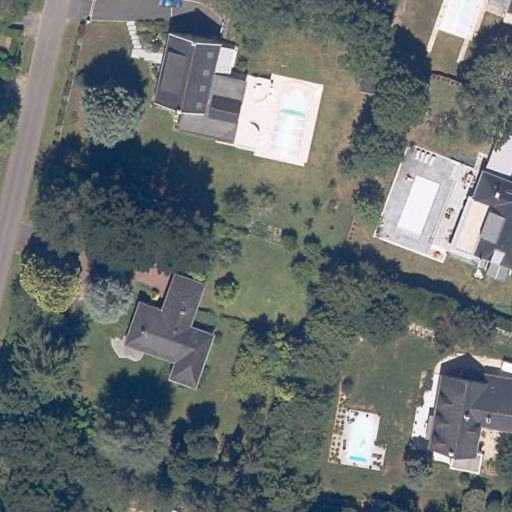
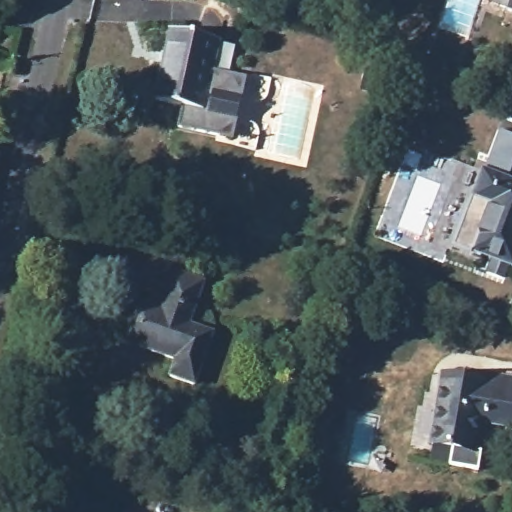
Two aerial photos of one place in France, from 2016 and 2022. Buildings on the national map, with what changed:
unchanged [(512,0),(512,8),(489,0),(512,0)]
unchanged [(170,30),(217,40),(210,72),(231,77),(241,92),(233,127),(217,137),(177,127),(182,107),(155,101),(170,30)]
unchanged [(512,183),(512,266),(472,250),(488,206),(470,199),(481,171),(512,183)]
unchanged [(143,298),(173,309),(176,299),(169,296),(178,268),(207,279),(193,322),(215,331),(198,382),(175,374),(180,357),(130,338),(143,298)]
unchanged [(481,388),(483,379),(512,384),(512,432),(477,427),(471,457),(430,450),(441,381),(481,388)]

